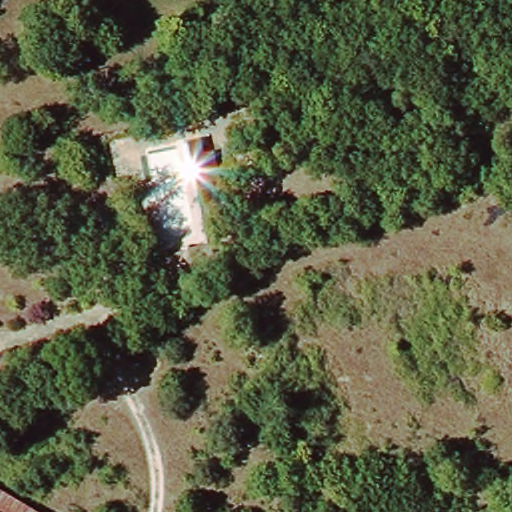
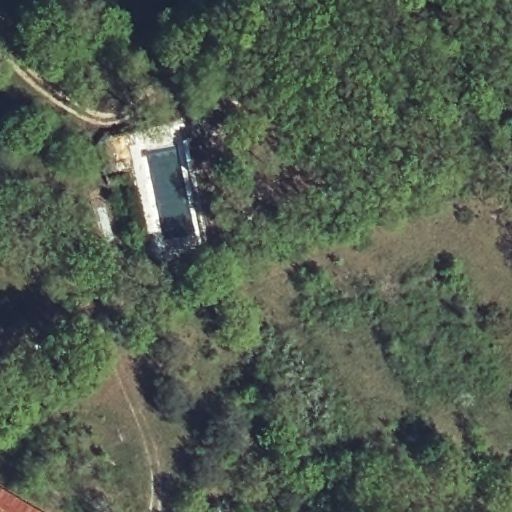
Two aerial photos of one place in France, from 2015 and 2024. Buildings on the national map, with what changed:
unchanged [(202,135),(205,149),(213,147),(217,163),(192,169),(186,139),(202,135)]
unchanged [(0,492),(35,512),(0,512),(0,492)]

